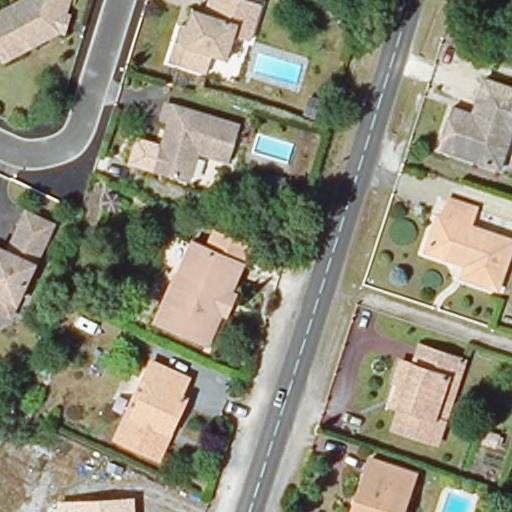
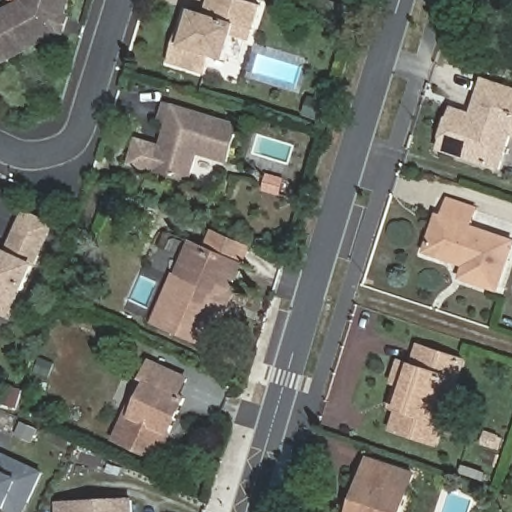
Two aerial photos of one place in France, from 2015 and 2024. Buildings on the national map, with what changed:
unchanged [(61,30),(6,58),(0,47),(0,13),(25,1),(25,0),(70,0),(66,14),(70,15),(66,31),(61,30)]
unchanged [(189,28),(194,11),(206,15),(210,0),(245,0),(262,5),(252,41),(236,36),(228,61),(213,56),(207,75),(170,63),(176,44),(181,26),(189,28)]
unchanged [(502,172),(441,152),(454,111),(477,118),(481,106),(487,83),(512,91),(512,143),(502,172)]
unchanged [(239,126),(228,162),(198,153),(190,182),(155,171),(164,144),(167,145),(174,124),(162,120),(167,104),(239,126)]
unchanged [(281,194),(266,189),(271,175),(285,179),(281,194)]
unchanged [(495,294),(459,282),(463,270),(423,257),(436,222),(441,224),(447,206),(472,214),(467,231),(510,246),(495,294)]
unchanged [(0,253),(4,255),(9,251),(21,225),(27,211),(54,224),(47,237),(11,314),(0,309),(0,253)]
unchanged [(212,227),(253,244),(245,265),(202,247),(212,227)]
unchanged [(227,316),(219,313),(205,344),(162,325),(153,322),(176,272),(189,243),(239,266),(228,292),(236,296),(227,316)]
unchanged [(440,448),(395,433),(402,413),(392,410),(400,387),(396,386),(402,366),(416,371),(423,349),(468,363),(460,385),(446,428),(440,448)]
unchanged [(151,456),(113,439),(125,414),(141,380),(149,363),(186,380),(177,397),(186,401),(171,435),(159,460),(151,456)]
new [(26,512),(11,512),(7,510),(2,508),(0,510),(0,469),(1,470),(4,453),(45,473),(26,512)]
unchanged [(406,512),(355,512),(361,494),(371,464),(417,480),(406,512)]
unchanged [(41,512),(41,507),(55,506),(131,500),(132,512),(41,512)]

